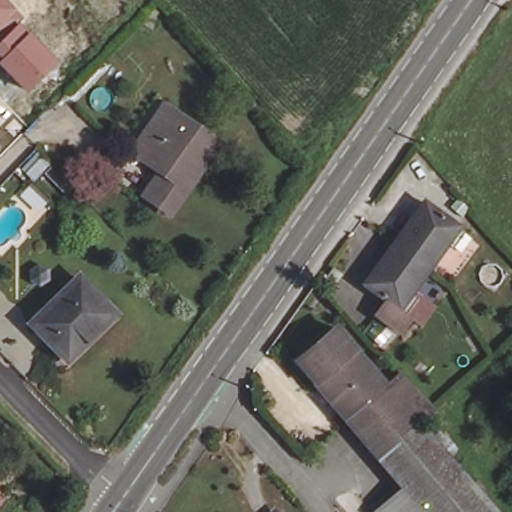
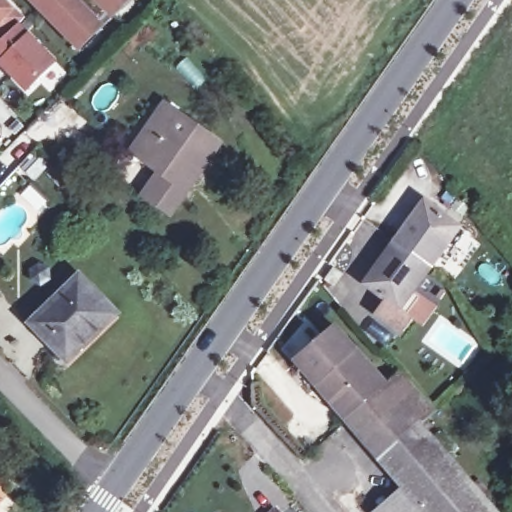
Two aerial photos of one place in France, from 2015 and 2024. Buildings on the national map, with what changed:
unchanged [(25,18),(20,23),(58,62),(28,92),(0,66),(0,63),(2,60),(0,58),(0,0),(7,0),(25,18)]
new [(113,20),(109,15),(102,21),(107,26),(80,53),(28,0),(133,0),(113,20)]
unchanged [(225,144),(177,212),(155,196),(170,174),(152,161),(138,152),(146,141),(170,106),(225,144)]
unchanged [(447,243),(430,267),(395,242),(405,228),(426,201),(430,204),(460,226),(460,227),(465,231),(454,248),(447,243)]
unchanged [(411,317),(400,331),(377,314),(388,300),(370,287),(365,283),(385,256),(395,242),(430,267),(412,292),(418,296),(407,312),(411,317)]
unchanged [(325,279),(333,268),(341,274),(333,285),(325,279)]
unchanged [(85,277),(120,313),(73,359),(38,323),(85,277)]
unchanged [(296,357),(334,325),(387,386),(349,420),(296,357)]
unchanged [(387,386),(401,373),(435,410),(421,424),(387,386)]
unchanged [(483,497),(496,512),(380,512),(406,488),(349,420),(387,386),(421,424),(474,485),(480,480),(490,492),(483,497)]

